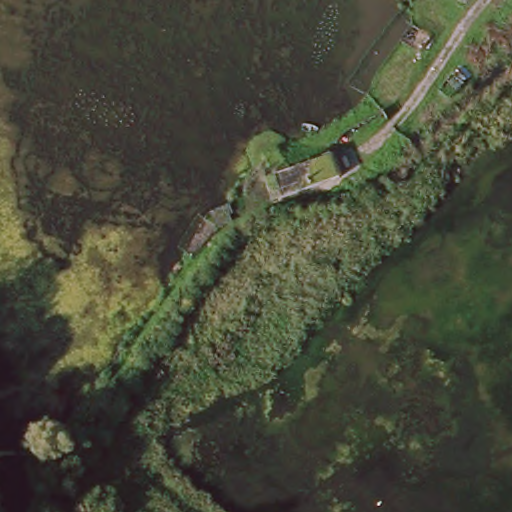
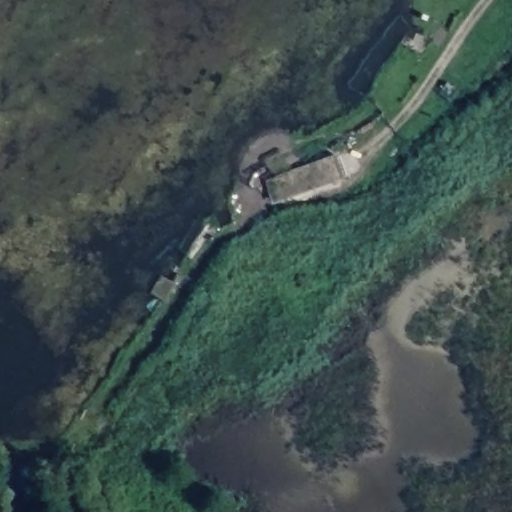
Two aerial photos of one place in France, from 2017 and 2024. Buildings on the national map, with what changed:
unchanged [(322,367),(333,382),(315,395),(305,378),(322,367)]

